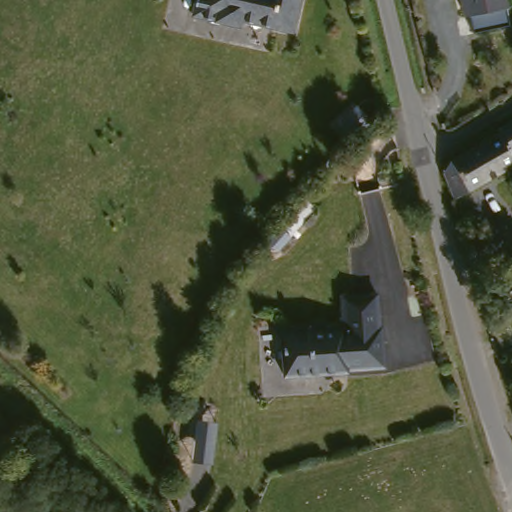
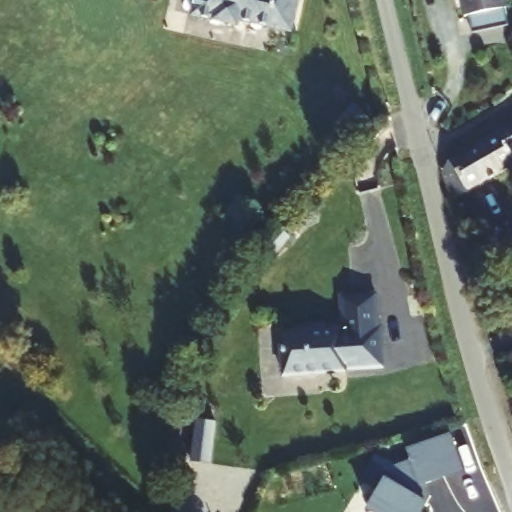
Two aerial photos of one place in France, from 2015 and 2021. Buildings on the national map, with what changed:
unchanged [(238,21),(237,26),(192,16),(195,0),(298,0),(291,33),(238,21)]
unchanged [(466,0),(512,0),(512,8),(475,24),(466,0)]
new [(358,106),(372,122),(355,138),(341,121),(358,106)]
unchanged [(512,171),(450,210),(438,177),(512,133),(512,171)]
unchanged [(304,339),(308,335),(322,334),(326,337),(342,336),(342,338),(380,335),(383,375),(346,378),(346,380),(283,385),(279,341),(304,339)]
new [(196,421),(217,424),(212,464),(192,462),(196,421)]
new [(421,502),(417,512),(375,512),(365,506),(376,487),(360,477),(375,452),(394,463),(410,458),(406,446),(449,432),(461,467),(420,481),(424,494),(421,502)]

